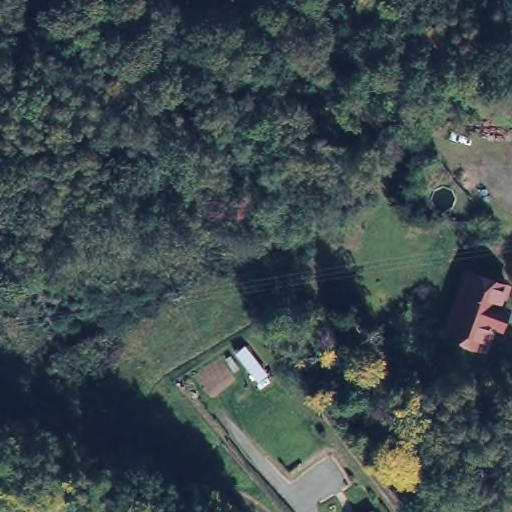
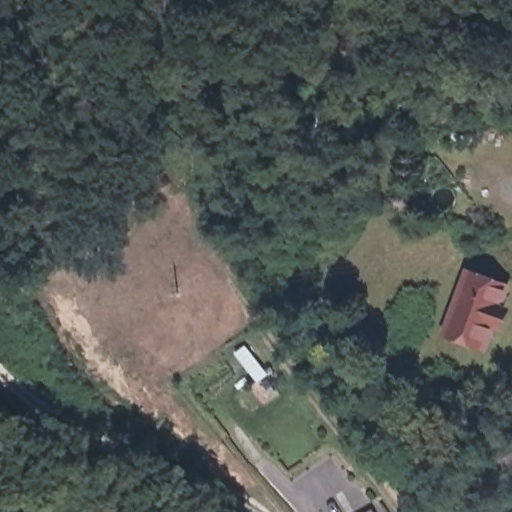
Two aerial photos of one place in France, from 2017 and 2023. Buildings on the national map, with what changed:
unchanged [(438,333),(462,268),(480,274),(482,270),(498,277),(495,283),(508,288),(501,305),(508,308),(500,332),(493,330),(486,354),(438,333)]

